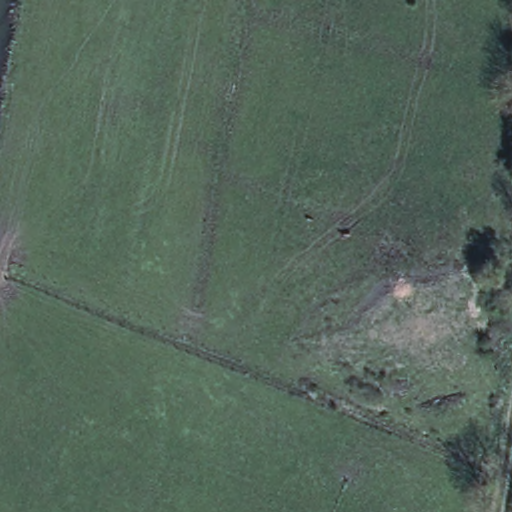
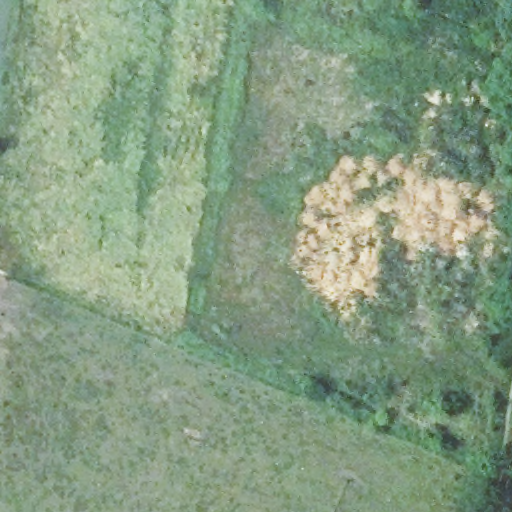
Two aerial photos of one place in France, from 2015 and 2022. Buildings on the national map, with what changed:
[]

